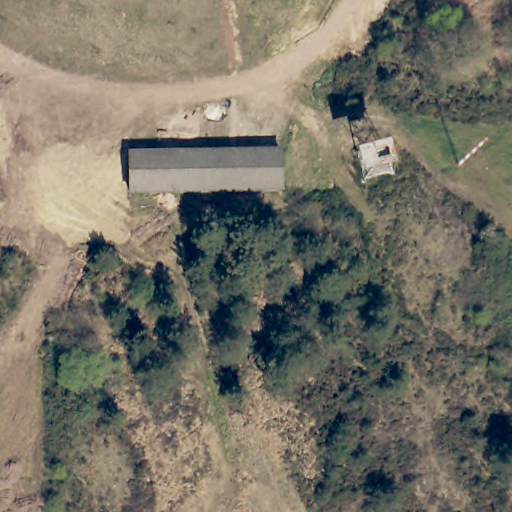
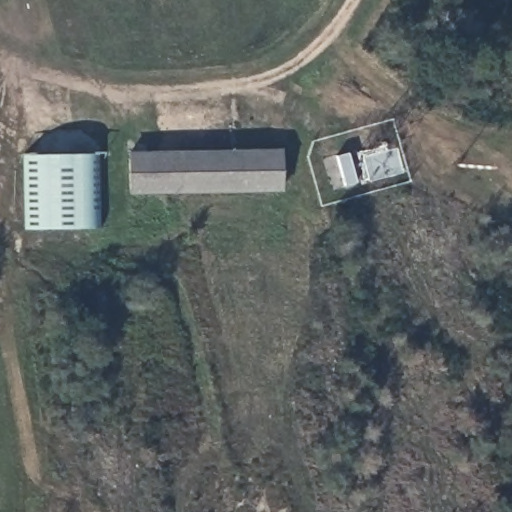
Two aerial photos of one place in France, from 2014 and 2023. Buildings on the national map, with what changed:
unchanged [(350,156),(383,149),(389,173),(356,179),(350,156)]
unchanged [(124,151),(277,152),(276,192),(123,195),(124,151)]
new [(95,228),(31,229),(31,155),(94,154),(95,228)]

